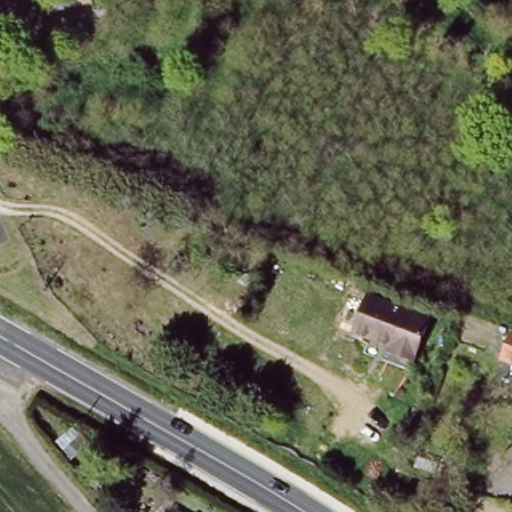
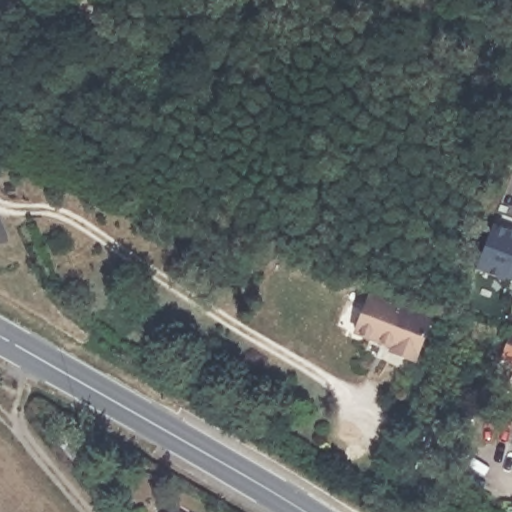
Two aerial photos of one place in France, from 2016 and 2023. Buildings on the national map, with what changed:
new [(504,279),(476,269),(492,224),(512,230),(512,278),(505,275),(504,279)]
unchanged [(407,371),(374,365),(378,349),(341,334),(356,287),(425,312),(407,371)]
new [(510,329),(512,330),(512,364),(499,359),(510,329)]
unchanged [(452,512),(448,512),(413,499),(420,480),(458,494),(452,512)]

